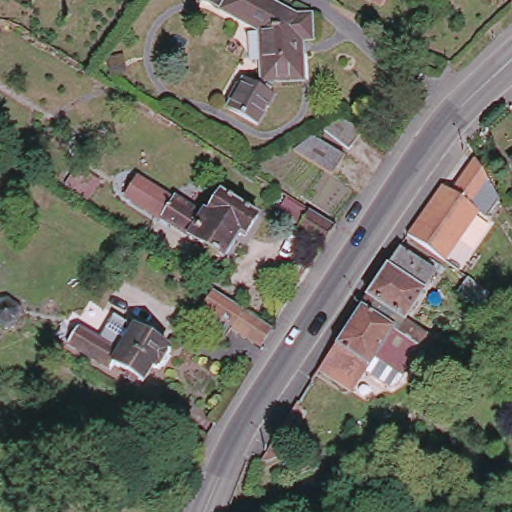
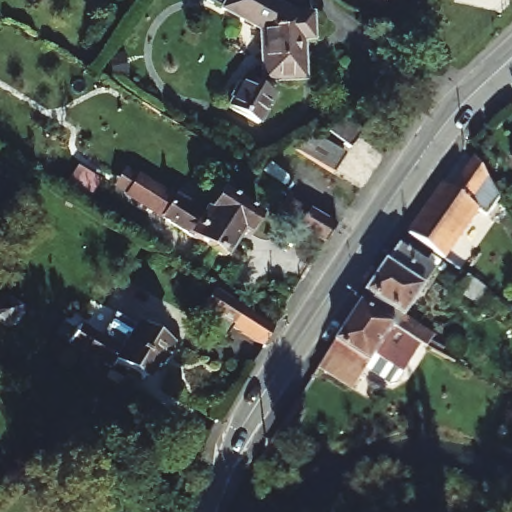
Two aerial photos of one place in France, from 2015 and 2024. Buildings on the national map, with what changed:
unchanged [(292,7),(305,6),(310,26),(302,32),(312,65),(275,72),(271,84),(282,89),(268,120),(232,104),(245,75),(262,81),(266,72),(256,26),(195,2),(196,0),(274,0),(292,7)]
unchanged [(374,6),(363,0),(377,0),(374,6)]
unchanged [(347,116),(367,128),(349,148),(347,147),(332,169),(300,148),(315,130),(347,116)]
unchanged [(412,230),(435,197),(446,179),(456,185),(480,151),(506,194),(494,213),(484,205),(450,256),(412,230)]
unchanged [(509,161),(512,159),(512,165),(509,161)]
unchanged [(207,213),(224,185),(262,210),(247,233),(242,231),(226,256),(219,251),(208,270),(196,262),(207,244),(161,214),(165,206),(137,189),(146,175),(207,213)]
unchanged [(326,219),(314,239),(287,221),(299,202),(326,219)]
unchanged [(360,312),(400,252),(437,276),(406,324),(435,344),(427,355),(423,352),(360,312)]
unchanged [(471,274),(465,283),(451,275),(458,265),(471,274)]
unchanged [(23,314),(15,331),(0,323),(0,310),(5,301),(22,311),(23,314)]
unchanged [(260,344),(230,326),(241,308),(270,327),(261,343),(260,344)]
unchanged [(402,379),(375,363),(353,396),(319,375),(360,312),(423,352),(402,379)]
unchanged [(163,346),(162,348),(165,350),(155,367),(147,365),(138,379),(133,376),(128,383),(120,377),(125,371),(110,362),(105,368),(64,343),(74,327),(101,343),(116,317),(163,346)]
unchanged [(278,435),(290,443),(272,469),(261,462),(278,435)]

